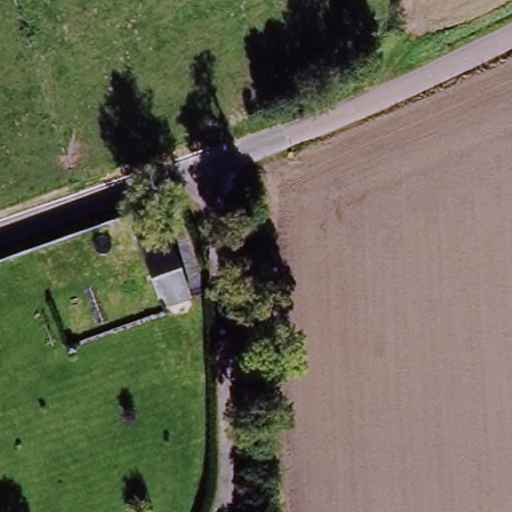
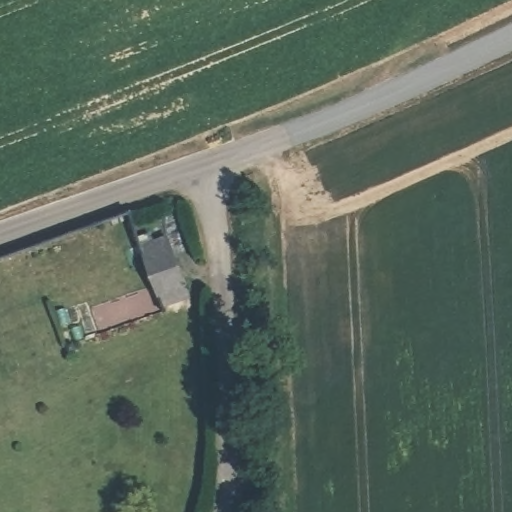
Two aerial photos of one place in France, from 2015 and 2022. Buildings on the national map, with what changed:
unchanged [(140,247),(179,237),(199,289),(160,302),(144,261),(140,247)]

